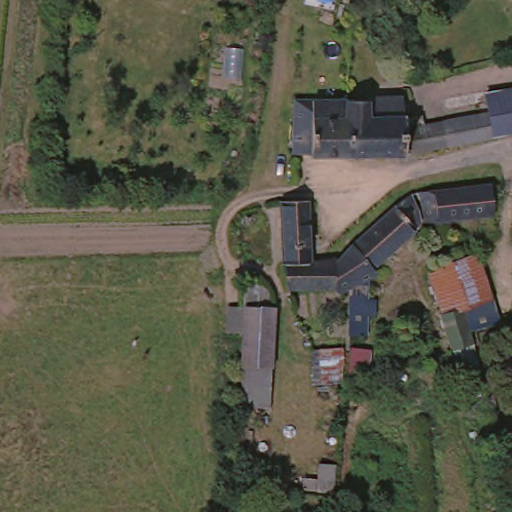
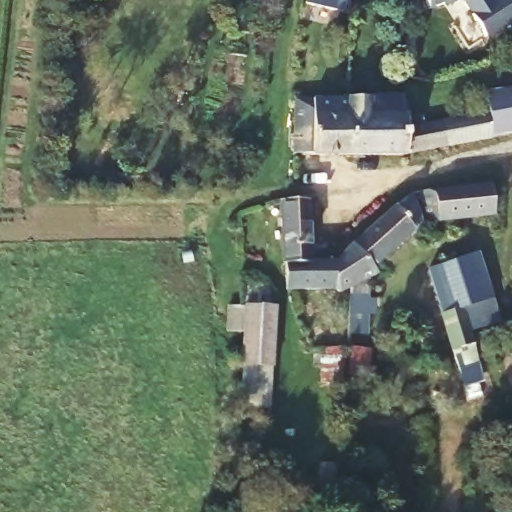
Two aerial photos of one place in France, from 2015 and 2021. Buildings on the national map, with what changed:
new [(488,39),(461,0),(431,10),(427,0),(512,0),(512,23),(488,39)]
unchanged [(487,107),(512,101),(512,146),(494,150),(489,121),(487,107)]
unchanged [(406,115),(407,130),(421,130),(424,137),(489,121),(494,150),(410,168),(346,173),(347,117),(406,115)]
unchanged [(291,176),(291,118),(347,117),(346,173),(298,176),(291,176)]
unchanged [(418,218),(414,190),(483,179),(484,187),(488,206),(418,218)]
unchanged [(369,221),(394,198),(397,195),(401,194),(413,207),(411,218),(361,265),(368,272),(359,280),(358,309),(368,310),(368,324),(358,324),(357,340),(351,338),(343,336),(347,288),(336,289),(333,255),(369,221)]
unchanged [(287,292),(278,202),(285,201),(306,200),(311,257),(333,255),(336,289),(287,292)]
unchanged [(425,273),(468,261),(483,325),(465,331),(460,312),(438,318),(425,273)]
unchanged [(460,312),(465,331),(476,369),(454,377),(438,318),(460,312)]
unchanged [(241,314),(268,313),(269,353),(241,355),(241,314)]
unchanged [(242,394),(241,355),(269,353),(270,392),(242,394)]
unchanged [(355,362),(354,388),(330,387),(333,360),(355,362)]

